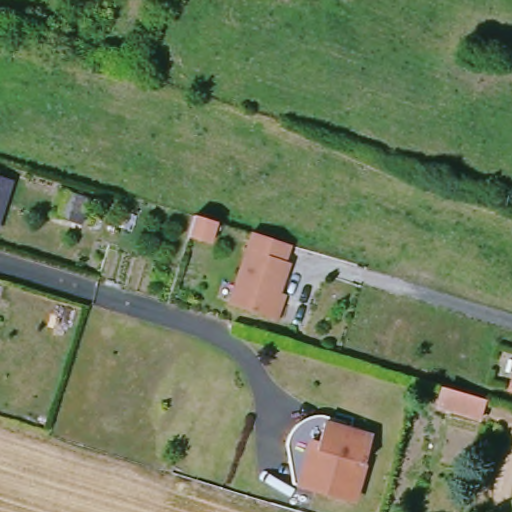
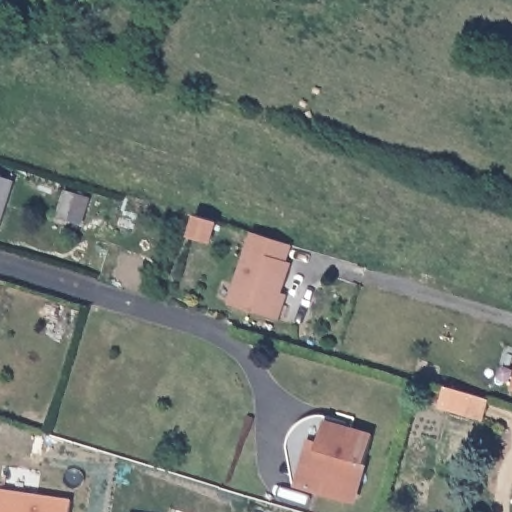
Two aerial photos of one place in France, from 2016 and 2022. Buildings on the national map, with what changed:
unchanged [(0,175),(6,177),(0,195),(0,175)]
unchanged [(68,187),(59,216),(42,209),(51,182),(68,187)]
unchanged [(289,245),(285,261),(290,264),(269,321),(226,307),(251,234),(289,245)]
unchanged [(512,366),(512,389),(505,387),(512,366)]
unchanged [(478,396),(472,416),(429,403),(436,383),(478,396)]
unchanged [(285,444),(293,422),(305,415),(320,411),(328,413),(338,417),(336,424),(319,420),(313,445),(307,443),(293,483),(285,444)]
unchanged [(371,433),(353,500),(293,483),(307,443),(313,445),(319,420),(336,424),(371,433)]
new [(70,512),(0,512),(0,492),(72,503),(70,512)]

